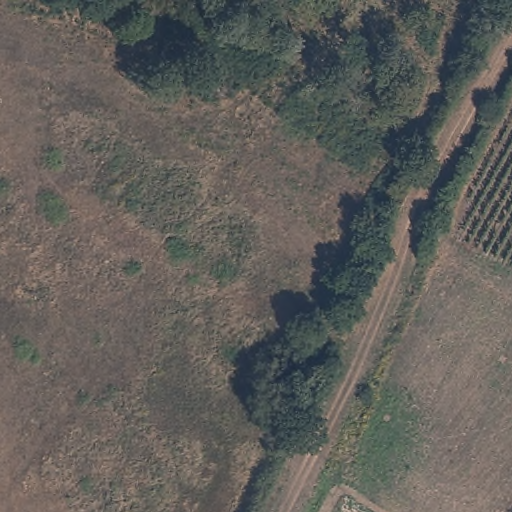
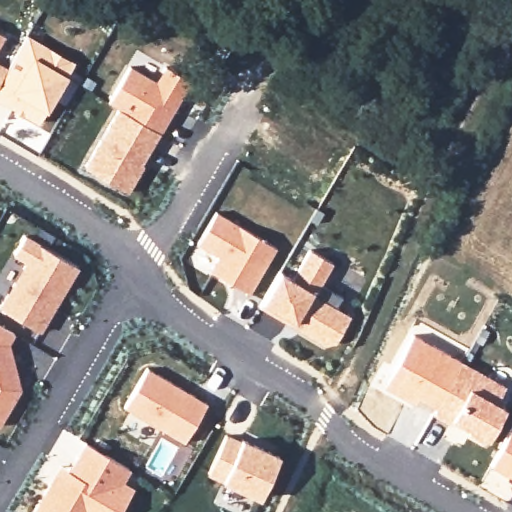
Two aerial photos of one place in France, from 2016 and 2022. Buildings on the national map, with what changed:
new [(5,35),(0,44),(0,33),(5,35)]
new [(7,67),(27,35),(75,63),(66,75),(68,75),(46,112),(44,111),(39,125),(0,102),(0,64),(7,67)]
new [(117,110),(106,103),(127,65),(155,81),(164,65),(190,80),(126,194),(82,167),(117,110)]
new [(217,256),(196,244),(215,212),(275,247),(248,295),(208,270),(217,256)]
new [(24,263),(11,256),(24,234),(40,243),(39,245),(79,267),(39,333),(0,309),(0,303),(24,263)]
new [(261,302),(280,271),(290,277),(310,250),(332,263),(320,285),(340,298),(333,307),(349,316),(333,343),(321,345),(257,306),(261,302)]
new [(14,335),(8,344),(20,390),(0,425),(0,327),(14,335)]
new [(413,334),(505,389),(495,402),(504,408),(486,440),(485,444),(465,433),(466,430),(450,420),(448,425),(432,415),(435,410),(416,399),(413,405),(382,386),(413,334)]
new [(150,370),(210,405),(186,445),(127,409),(150,370)]
new [(512,427),(512,479),(489,466),(511,426),(512,427)]
new [(227,436),(242,443),(244,440),(281,458),(262,498),(210,475),(227,436)]
new [(59,465),(67,470),(85,442),(130,470),(122,481),(134,488),(120,512),(31,512),(59,465)]

